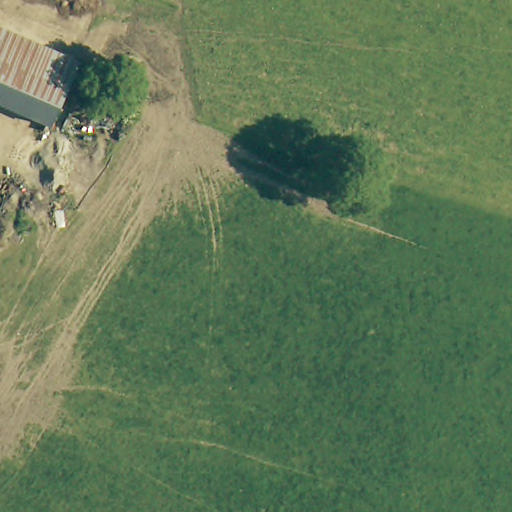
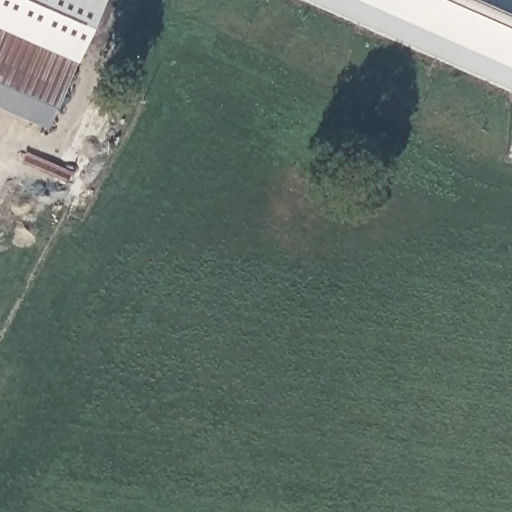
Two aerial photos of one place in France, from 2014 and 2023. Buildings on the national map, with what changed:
new [(71,67),(0,35),(0,0),(104,0),(71,67)]
new [(512,91),(306,0),(512,0),(512,91)]
unchanged [(71,67),(50,113),(0,91),(0,35),(71,67)]
unchanged [(50,113),(42,130),(0,113),(0,91),(50,113)]

